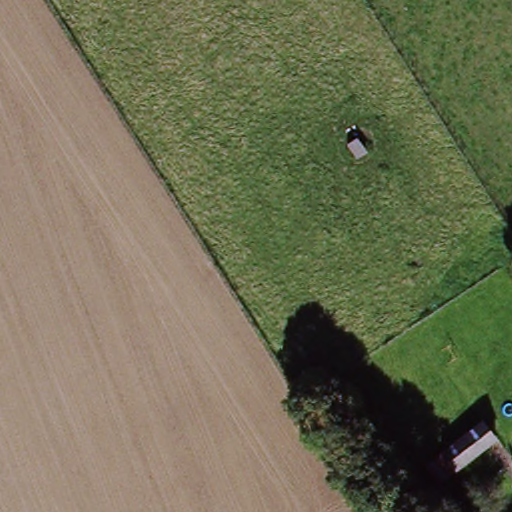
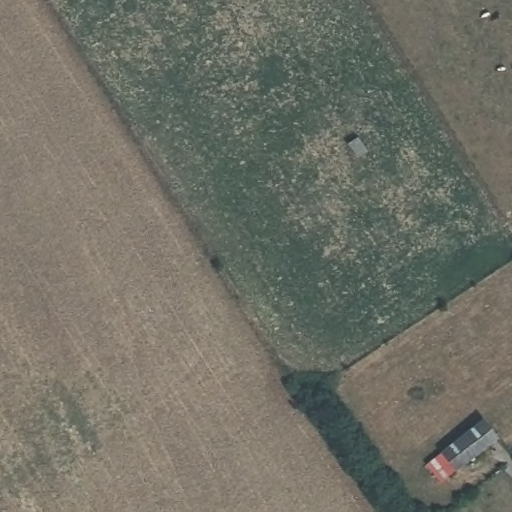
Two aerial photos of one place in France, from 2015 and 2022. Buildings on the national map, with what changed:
unchanged [(430,487),(418,472),(484,421),(496,437),(430,487)]

